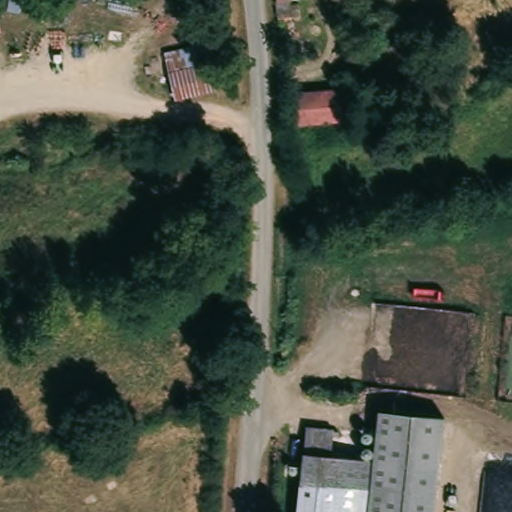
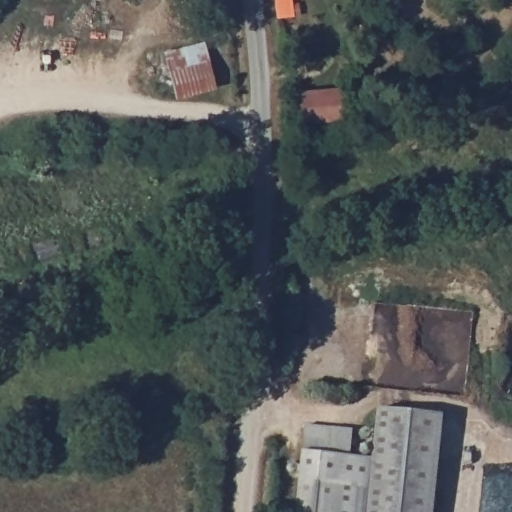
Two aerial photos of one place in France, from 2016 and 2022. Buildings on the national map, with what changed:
unchanged [(203,59),(214,92),(166,102),(158,69),(203,59)]
unchanged [(339,119),(294,121),(293,91),(336,87),(339,119)]
unchanged [(442,418),(444,418),(443,425),(435,512),(370,512),(372,490),(378,490),(381,463),(374,462),(379,412),(442,418)]
unchanged [(333,458),(374,462),(381,463),(378,490),(372,490),(370,512),(299,512),(304,456),(306,428),(336,431),(333,458)]

